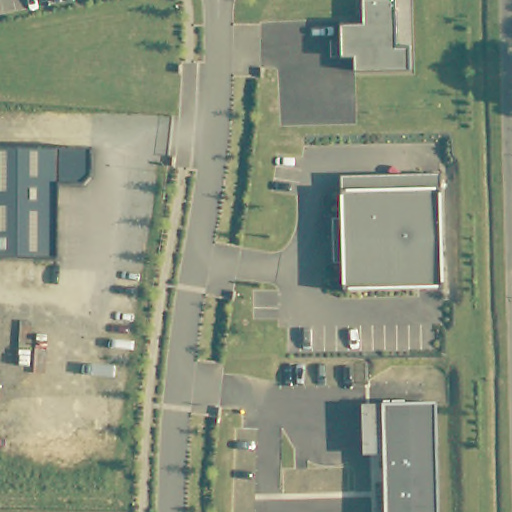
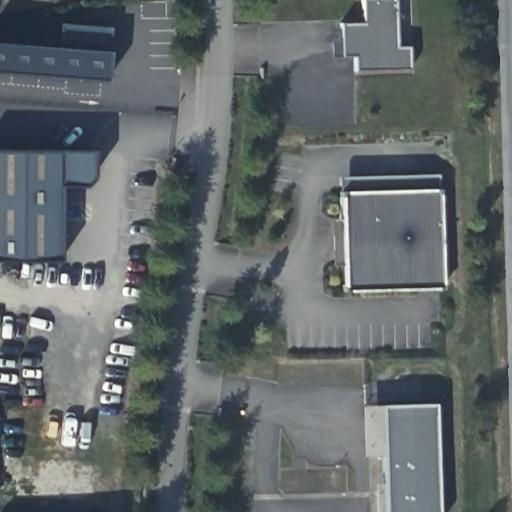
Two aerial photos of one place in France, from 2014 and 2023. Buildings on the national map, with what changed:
unchanged [(359,70),(359,58),(342,57),(341,24),(364,24),(364,0),(394,0),(395,47),(409,47),(410,71),(359,70)]
new [(105,82),(0,73),(0,44),(58,49),(59,24),(109,28),(105,82)]
unchanged [(90,152),(88,180),(78,186),(53,185),(53,261),(0,260),(0,150),(90,152)]
unchanged [(344,291),(342,195),(342,179),(440,177),(440,192),(446,288),(344,291)]
unchanged [(364,457),(361,407),(435,405),(439,512),(378,512),(376,456),(364,457)]

